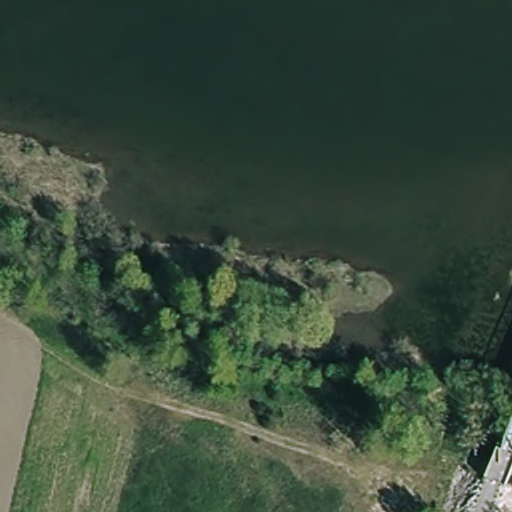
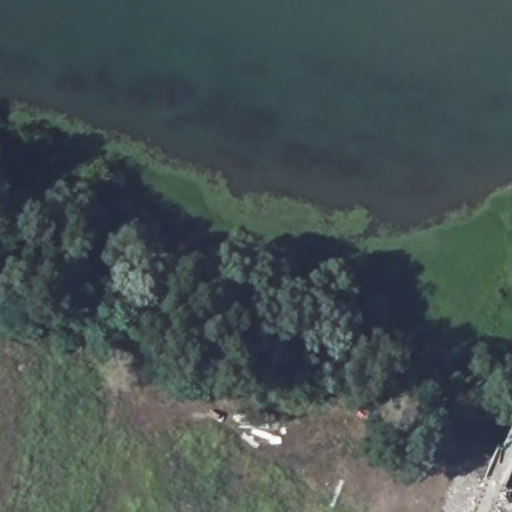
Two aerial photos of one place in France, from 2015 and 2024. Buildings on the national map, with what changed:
[]

